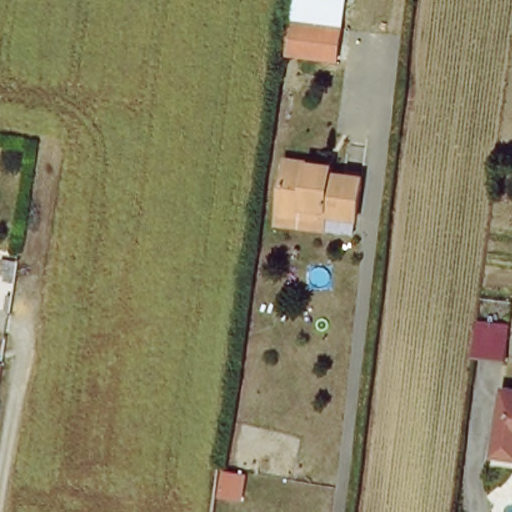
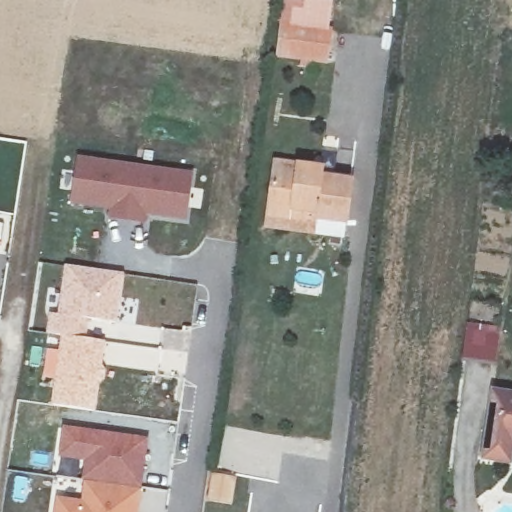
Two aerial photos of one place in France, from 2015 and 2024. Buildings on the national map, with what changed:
unchanged [(330,31),(323,63),(287,56),(292,24),(330,31)]
new [(187,221),(150,217),(148,224),(111,219),(112,212),(71,206),(80,157),(195,173),(187,221)]
unchanged [(265,213),(267,202),(272,161),(327,171),(326,175),(350,180),(343,220),(315,215),(313,223),(265,213)]
new [(62,336),(52,332),(55,315),(62,316),(70,266),(123,274),(116,322),(87,318),(83,339),(62,336)]
new [(470,322),(500,327),(495,365),(465,360),(470,322)]
new [(62,336),(83,339),(107,342),(104,367),(107,371),(106,382),(102,385),(97,412),(52,405),(62,336)]
unchanged [(492,387),(512,391),(512,436),(508,435),(505,454),(485,452),(492,387)]
new [(90,460),(63,455),(67,430),(147,440),(142,489),(86,481),(90,460)]
new [(82,500),(86,481),(142,489),(139,512),(55,512),(57,497),(82,500)]

